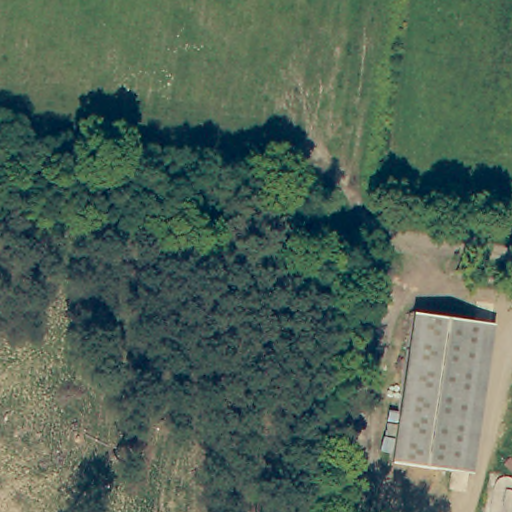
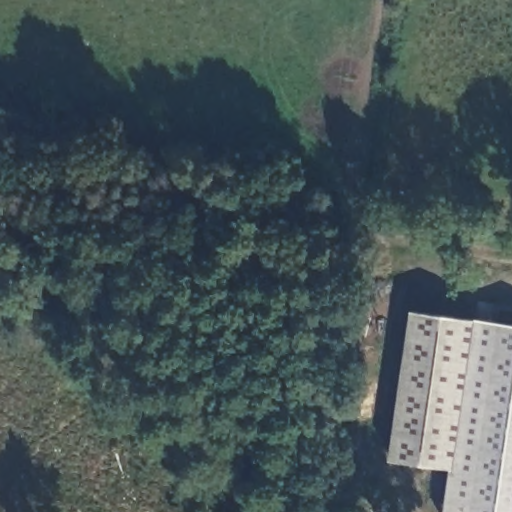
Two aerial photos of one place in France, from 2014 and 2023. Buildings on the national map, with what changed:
unchanged [(480,321),(458,470),(398,462),(419,312),(480,321)]
new [(512,512),(445,512),(450,469),(458,470),(480,321),(512,324),(512,512)]

